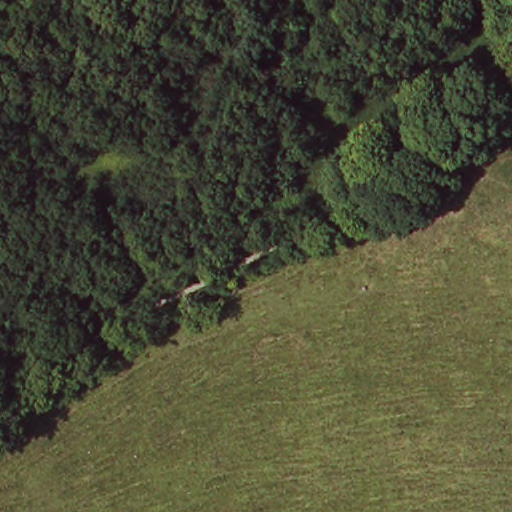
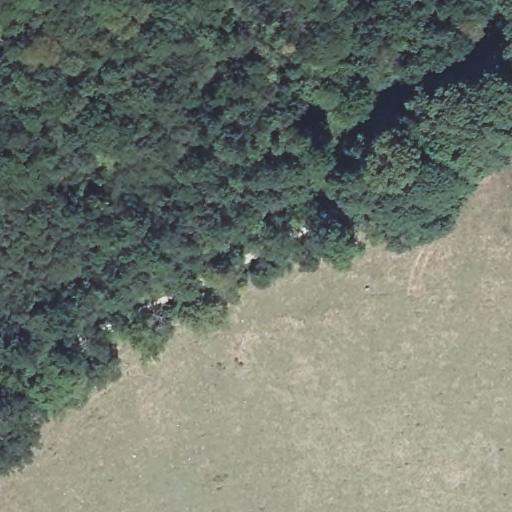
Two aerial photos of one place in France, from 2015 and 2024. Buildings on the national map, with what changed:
[]

